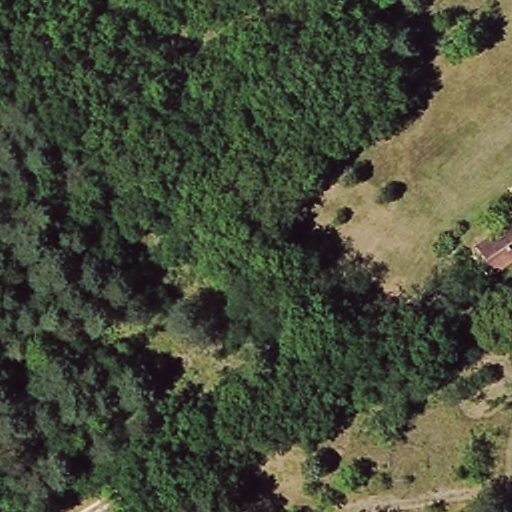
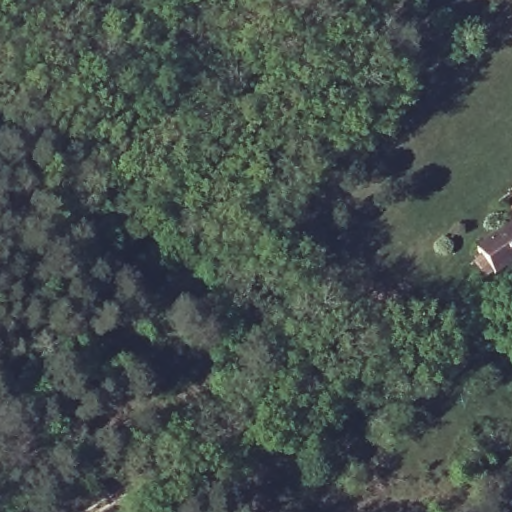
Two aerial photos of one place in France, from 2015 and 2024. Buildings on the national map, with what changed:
unchanged [(512,222),(512,263),(480,287),(471,271),(453,281),(447,273),(464,261),(462,258),(512,222)]

